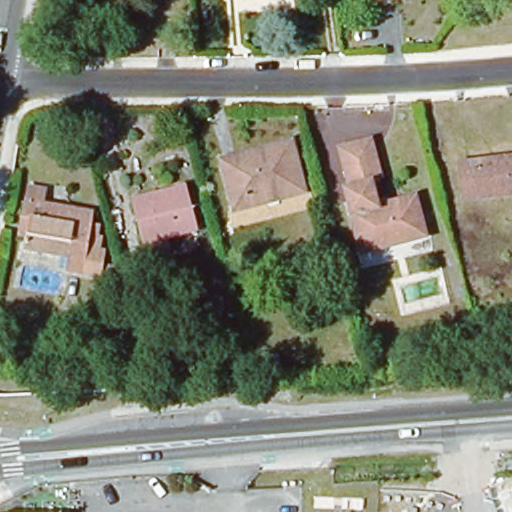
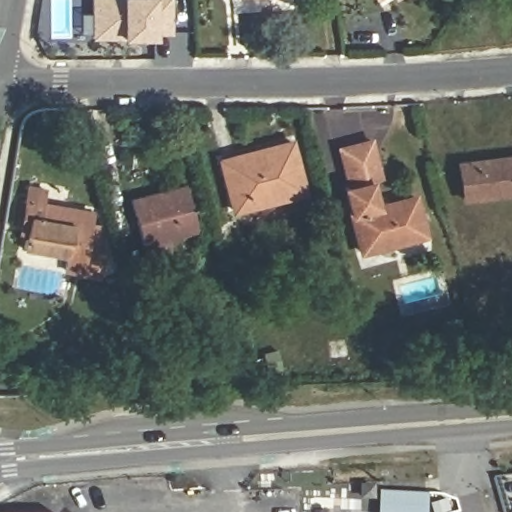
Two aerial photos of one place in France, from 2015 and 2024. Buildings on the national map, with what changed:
new [(171,33),(156,33),(156,38),(122,38),(93,38),(92,0),(171,0),(171,33)]
unchanged [(378,2),(377,0),(383,0),(378,2)]
unchanged [(396,1),(396,0),(398,0),(396,1)]
unchanged [(289,143),(302,195),(231,213),(218,162),(289,143)]
unchanged [(415,198),(425,238),(363,254),(347,192),(351,191),(342,151),(361,146),(371,143),(380,179),(370,181),(377,208),(415,198)]
unchanged [(512,201),(460,206),(456,169),(512,163),(512,201)]
unchanged [(183,189),(194,233),(139,246),(128,203),(183,189)]
unchanged [(42,194),(40,207),(89,216),(87,227),(96,228),(94,241),(98,242),(96,253),(101,254),(96,280),(66,273),(69,260),(24,251),(26,240),(17,238),(21,215),(26,191),(42,194)]
new [(426,493),(425,512),(377,512),(378,490),(426,493)]

